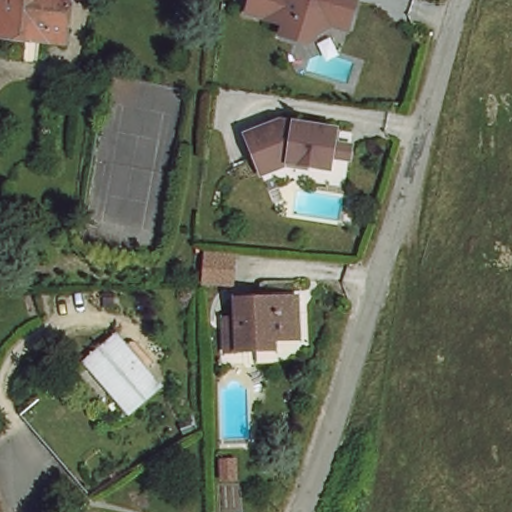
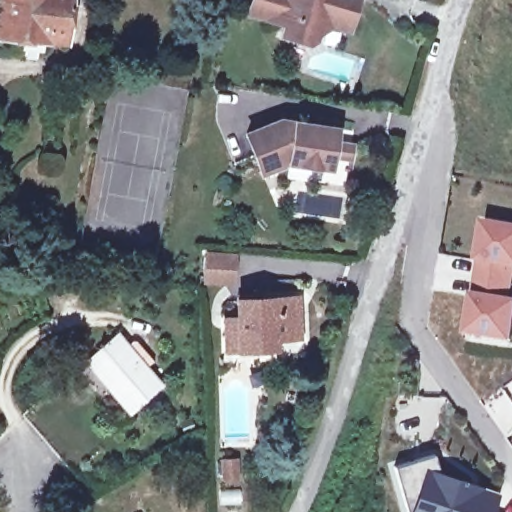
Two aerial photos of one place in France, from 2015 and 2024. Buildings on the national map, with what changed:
unchanged [(0,0),(71,0),(67,43),(0,36),(0,0)]
unchanged [(324,17),(322,18),(308,25),(306,31),(300,34),(273,25),(276,15),(240,3),(241,0),(347,0),(343,11),(340,22),(324,17)]
unchanged [(255,165),(240,125),(275,112),(322,120),(330,122),(327,136),(344,138),(342,151),(325,149),(322,161),(301,157),(283,154),(255,165)]
new [(470,309),(480,245),(484,223),(490,224),(512,227),(512,264),(511,264),(506,300),(512,301),(512,320),(509,338),(473,332),(467,331),(470,309)]
new [(214,254),(239,257),(235,283),(211,280),(214,254)]
unchanged [(226,319),(241,319),(240,300),(300,298),(302,338),(259,339),(260,348),(242,349),(228,350),(226,319)]
unchanged [(160,391),(135,411),(91,355),(117,335),(160,391)]
unchanged [(103,448),(74,473),(23,414),(52,389),(103,448)]
new [(428,512),(407,512),(393,464),(433,452),(440,473),(460,480),(461,478),(467,480),(467,482),(471,484),(495,492),(492,502),(489,512),(429,512),(428,511),(428,512)]

